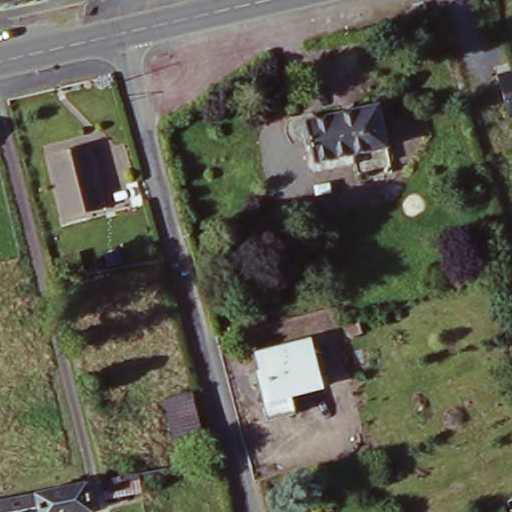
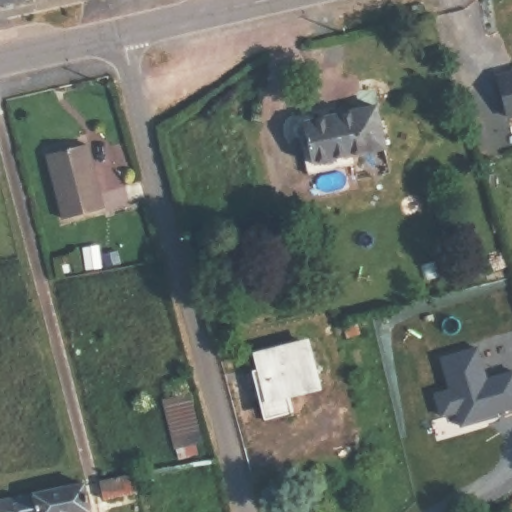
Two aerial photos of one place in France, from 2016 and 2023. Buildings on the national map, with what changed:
unchanged [(0,0),(30,0),(30,6),(0,11),(0,0)]
unchanged [(30,0),(64,0),(30,6),(30,0)]
unchanged [(509,120),(498,81),(512,77),(512,119),(509,120)]
unchanged [(377,112),(385,153),(312,170),(311,167),(304,127),(375,112),(377,112)]
unchanged [(89,150),(105,215),(65,225),(50,160),(89,150)]
unchanged [(268,417),(254,360),(308,347),(318,392),(290,399),(292,412),(268,417)]
new [(476,352),(485,385),(512,377),(512,411),(500,413),(498,411),(482,416),(480,423),(462,427),(458,414),(442,418),(437,399),(450,396),(441,362),(476,352)]
unchanged [(187,387),(201,435),(196,436),(198,447),(182,450),(180,441),(174,442),(161,392),(187,387)]
unchanged [(100,484),(125,478),(135,477),(139,495),(104,502),(100,484)]
unchanged [(84,492),(87,512),(0,512),(0,508),(45,500),(84,492)]

